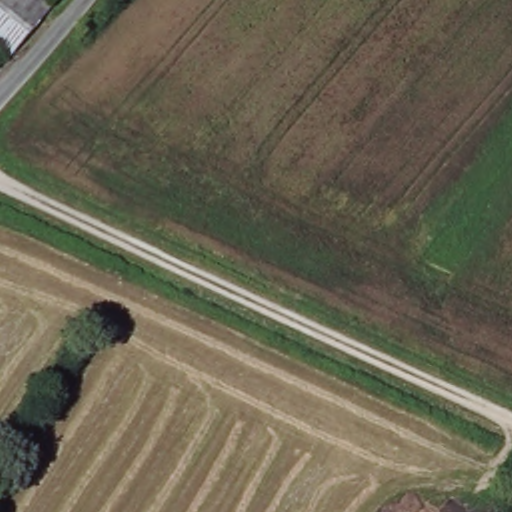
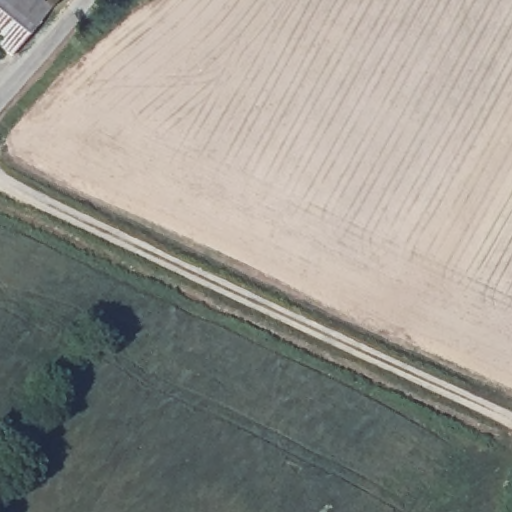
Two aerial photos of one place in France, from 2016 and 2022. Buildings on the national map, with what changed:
unchanged [(41,0),(48,6),(8,52),(0,46),(0,0),(41,0)]

